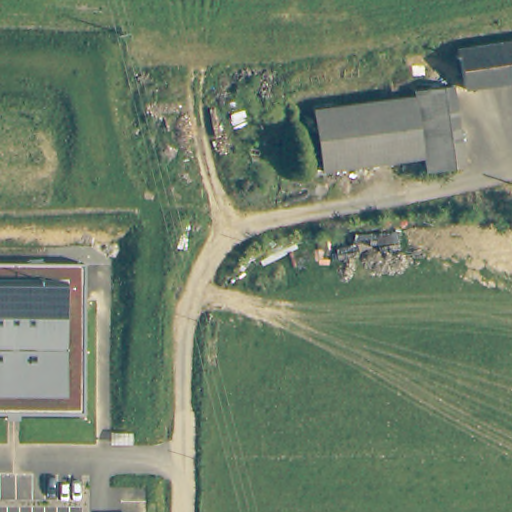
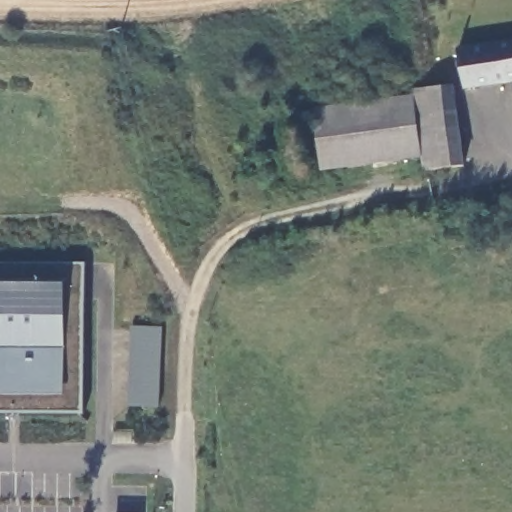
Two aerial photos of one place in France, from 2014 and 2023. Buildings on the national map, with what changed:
unchanged [(460,90),(453,50),(512,40),(512,81),(460,90)]
unchanged [(450,92),(457,177),(420,180),(418,161),(413,99),(412,94),(450,92)]
unchanged [(385,100),(413,99),(418,161),(386,164),(316,168),(310,106),(358,102),(385,100)]
unchanged [(0,397),(0,257),(85,256),(86,396),(0,397)]
new [(158,408),(128,407),(130,326),(160,327),(158,408)]

